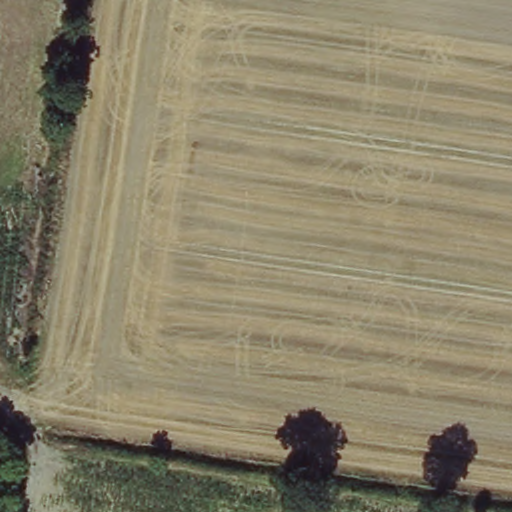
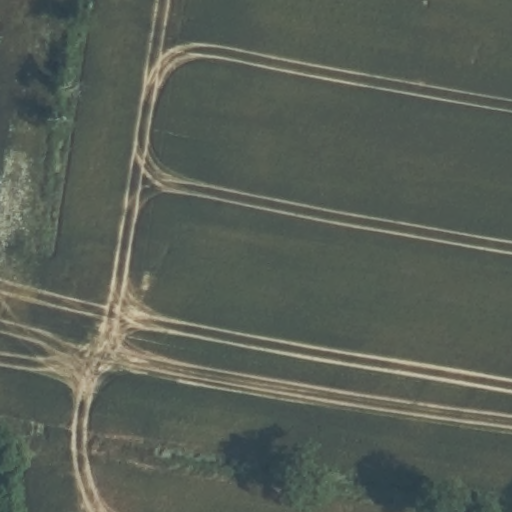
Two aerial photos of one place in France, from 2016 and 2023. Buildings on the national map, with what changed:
[]

